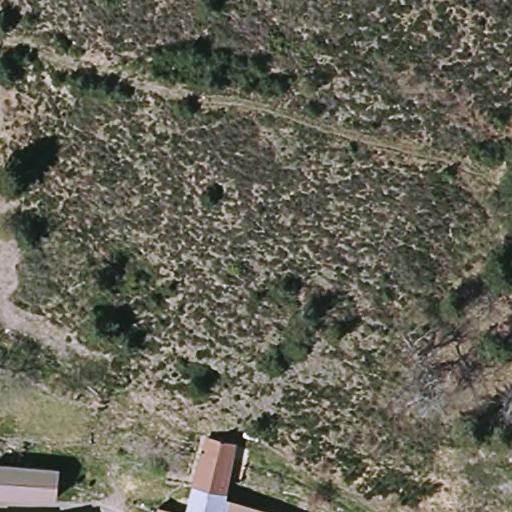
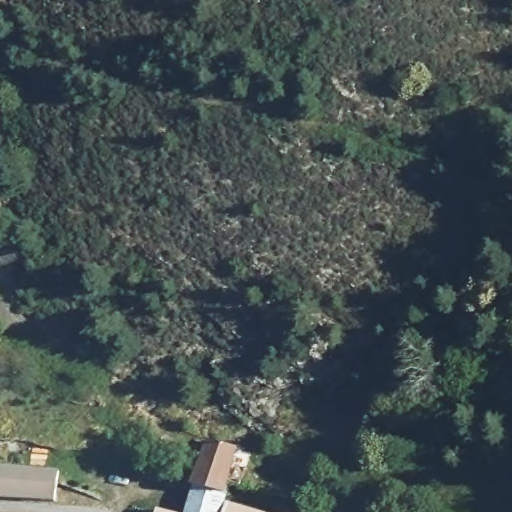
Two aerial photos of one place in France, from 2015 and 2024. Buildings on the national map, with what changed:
unchanged [(202,457),(207,436),(218,439),(238,445),(232,465),(229,475),(217,512),(184,512),(200,464),(202,457)]
unchanged [(0,499),(0,467),(58,470),(57,504),(0,499)]
unchanged [(178,512),(149,512),(152,505),(178,512)]

